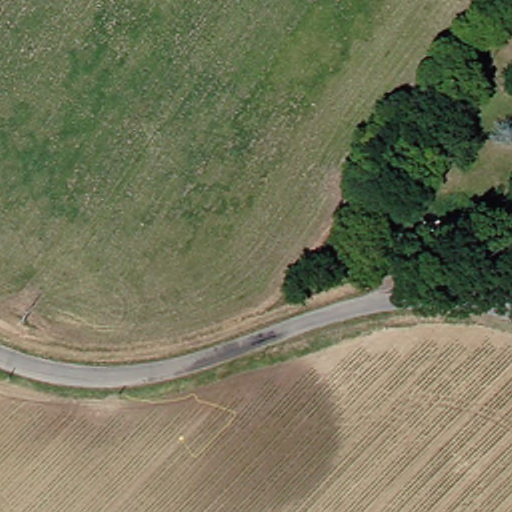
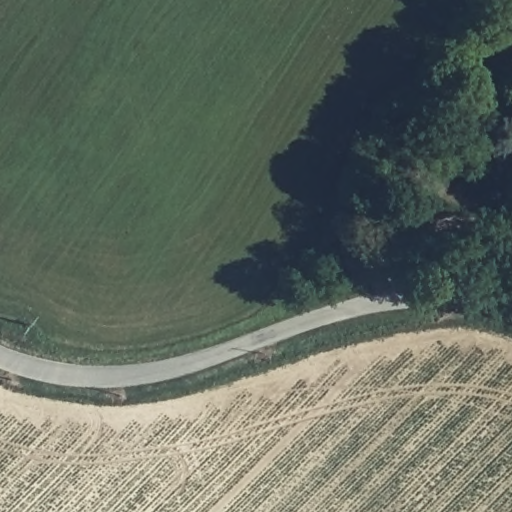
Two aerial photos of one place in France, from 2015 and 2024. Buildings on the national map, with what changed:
[]

